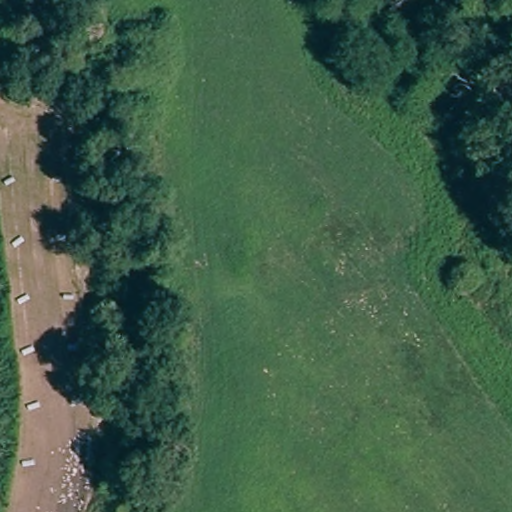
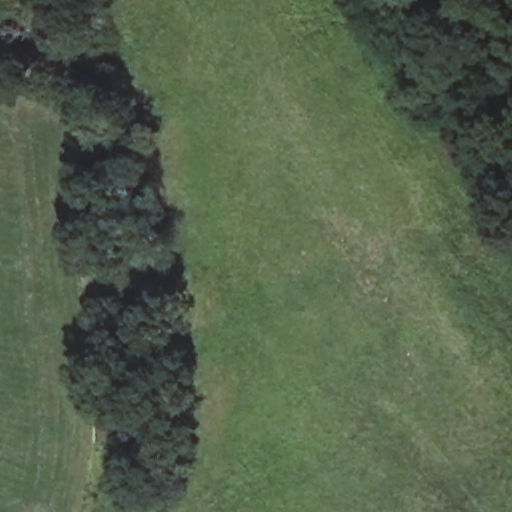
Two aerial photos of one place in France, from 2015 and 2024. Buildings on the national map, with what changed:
[]

